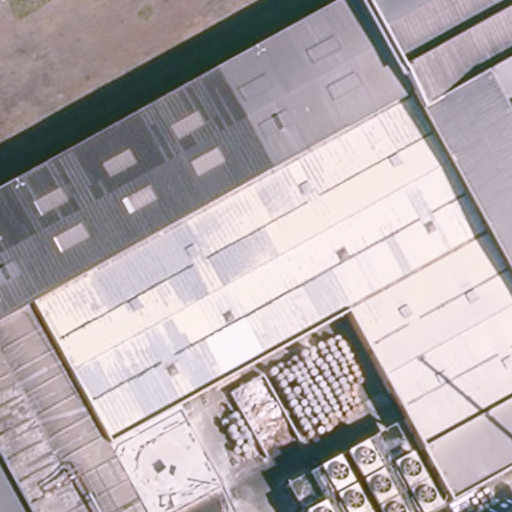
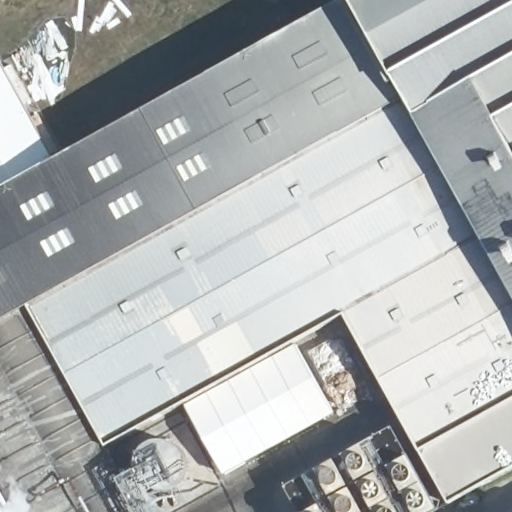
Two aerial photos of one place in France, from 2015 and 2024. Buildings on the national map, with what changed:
unchanged [(0,0),(1,0),(0,1),(0,0)]
unchanged [(58,160),(319,15),(343,0),(512,0),(512,470),(448,504),(347,315),(108,445),(144,512),(0,512),(0,65),(4,62),(58,160)]
new [(186,405),(297,345),(334,413),(223,475),(186,405)]
unchanged [(286,488),(392,428),(438,511),(436,512),(299,512),(286,488)]

